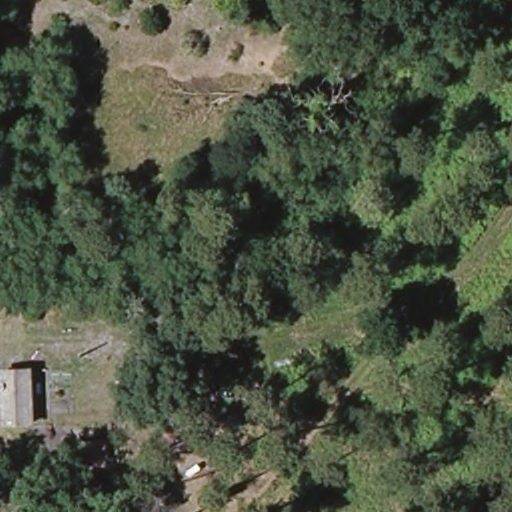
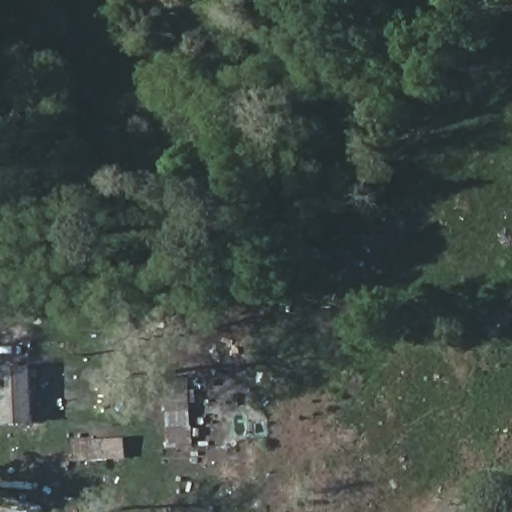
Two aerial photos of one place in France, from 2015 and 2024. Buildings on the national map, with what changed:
unchanged [(151,0),(187,0),(187,5),(151,0)]
unchanged [(13,426),(13,372),(40,371),(39,423),(13,426)]

